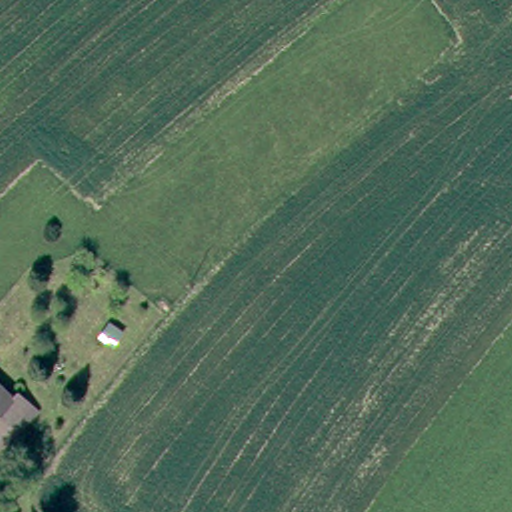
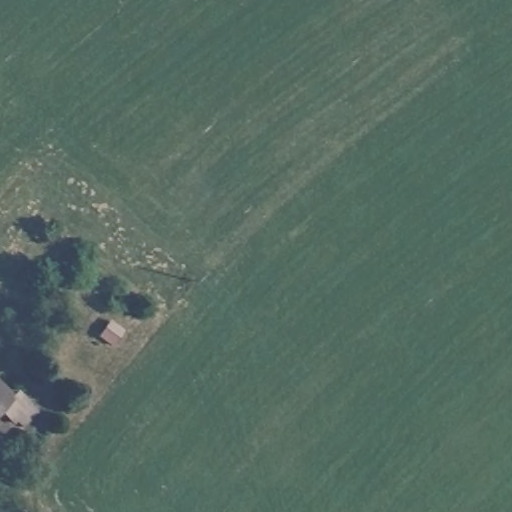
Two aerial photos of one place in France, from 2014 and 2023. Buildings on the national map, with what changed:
unchanged [(17,420),(12,415),(9,417),(0,408),(0,381),(7,389),(16,381),(30,398),(35,404),(17,420)]

